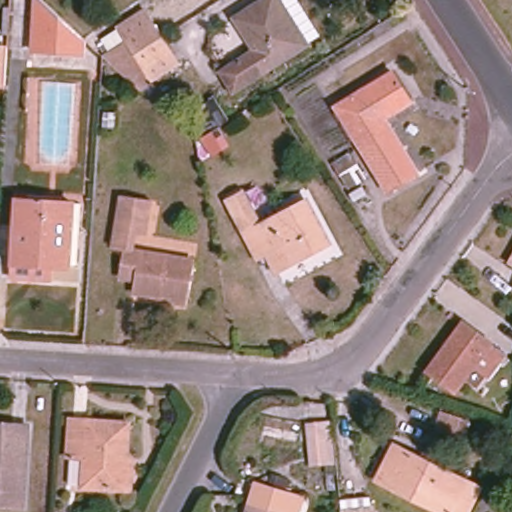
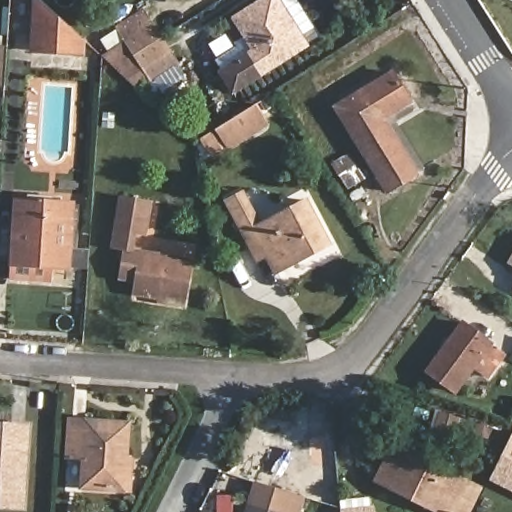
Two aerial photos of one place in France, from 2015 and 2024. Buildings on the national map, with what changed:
unchanged [(84,37),(83,55),(32,51),(33,0),(43,0),(84,37)]
unchanged [(231,88),(219,69),(253,46),(234,15),(259,0),(299,0),(319,32),(231,88)]
unchanged [(105,58),(91,45),(148,9),(164,34),(166,38),(184,65),(157,81),(153,75),(149,78),(153,84),(142,92),(118,69),(114,65),(105,58)]
unchanged [(7,85),(0,85),(0,46),(8,46),(7,85)]
unchanged [(413,104),(385,120),(418,176),(390,193),(340,107),(395,73),(413,104)]
new [(210,158),(198,139),(256,104),(269,126),(210,158)]
unchanged [(369,191),(355,203),(334,164),(352,156),(369,191)]
unchanged [(250,250),(226,206),(239,199),(246,195),(262,225),(307,202),(332,247),(280,273),(271,256),(257,262),(250,250)]
unchanged [(148,238),(136,236),(134,252),(195,262),(189,302),(133,293),(135,280),(122,277),(126,250),(116,249),(124,199),(153,204),(148,238)]
unchanged [(69,264),(52,262),(52,277),(14,275),(17,200),(72,202),(69,264)]
unchanged [(512,255),(512,268),(506,265),(512,255)]
unchanged [(485,377),(471,368),(454,392),(428,373),(462,326),(489,345),(487,346),(501,356),(485,377)]
unchanged [(411,423),(412,408),(433,410),(432,425),(411,423)]
unchanged [(128,490),(120,490),(79,487),(81,458),(64,457),(66,420),(123,423),(122,461),(130,461),(128,490)]
unchanged [(327,420),(331,466),(305,470),(300,422),(327,420)]
unchanged [(19,425),(10,504),(0,503),(0,423),(19,425)]
new [(512,436),(512,491),(490,480),(512,436)]
unchanged [(440,512),(376,480),(393,446),(478,488),(466,512),(440,512)]
unchanged [(304,512),(253,512),(259,492),(306,506),(304,512)]
unchanged [(372,512),(337,512),(335,502),(370,498),(372,512)]

